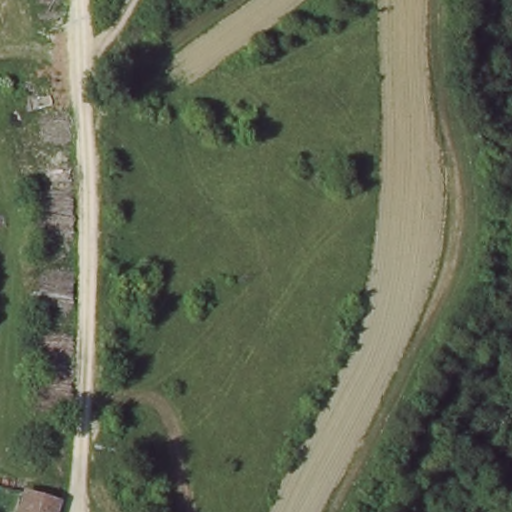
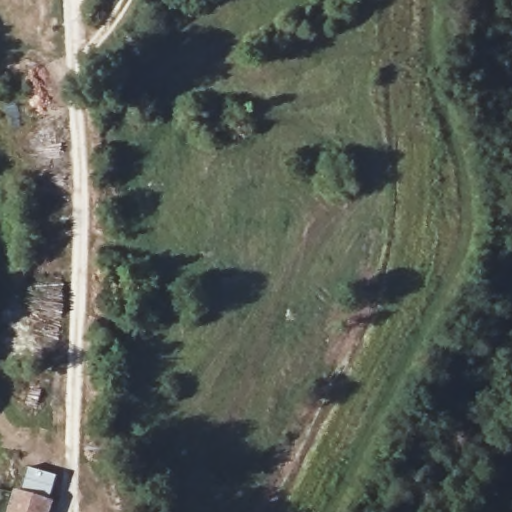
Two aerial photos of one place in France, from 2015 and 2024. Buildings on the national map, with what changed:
unchanged [(45,512),(19,512),(22,497),(47,505),(45,512)]

